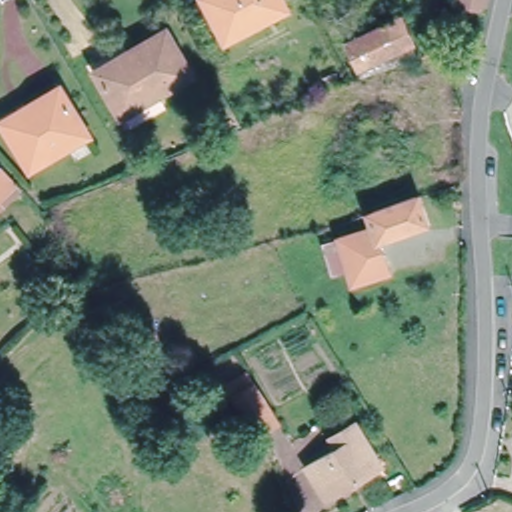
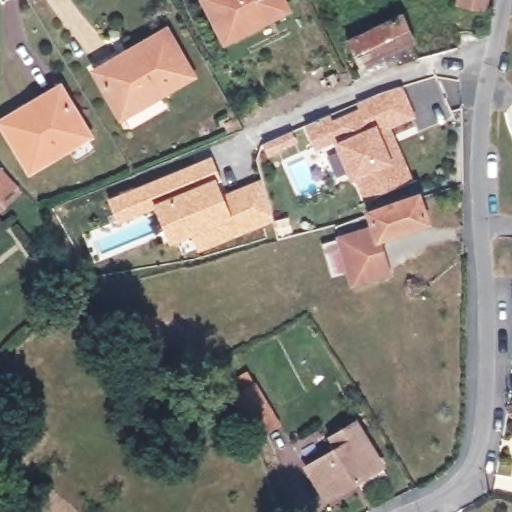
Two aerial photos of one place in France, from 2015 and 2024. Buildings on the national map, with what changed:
unchanged [(226,41),(205,0),(280,0),(286,10),(226,41)]
unchanged [(485,19),(456,12),(458,0),(489,0),(485,19)]
unchanged [(357,62),(344,35),(397,10),(408,32),(404,34),(414,53),(410,54),(395,61),(361,71),(357,62)]
unchanged [(121,117),(96,74),(166,32),(191,76),(121,117)]
new [(416,117),(393,130),(412,174),(366,197),(358,179),(353,180),(336,139),(315,150),(304,126),(330,115),(333,119),(358,107),(356,104),(403,85),(416,117)]
unchanged [(31,167),(4,124),(18,115),(59,90),(64,97),(86,133),(31,167)]
new [(213,156),(221,177),(216,178),(223,196),(262,178),(273,222),(200,254),(192,236),(169,245),(155,209),(119,224),(108,198),(213,156)]
unchanged [(0,168),(18,187),(0,203),(0,168)]
unchanged [(377,236),(390,267),(356,280),(350,264),(344,266),(336,245),(342,242),(339,237),(372,224),(366,209),(412,190),(413,192),(424,217),(377,236)]
unchanged [(173,370),(168,357),(171,356),(165,342),(175,338),(186,364),(173,370)]
unchanged [(256,438),(226,391),(248,376),(279,423),(256,438)]
unchanged [(326,500),(307,471),(339,451),(332,440),(358,423),(383,464),(326,500)]

